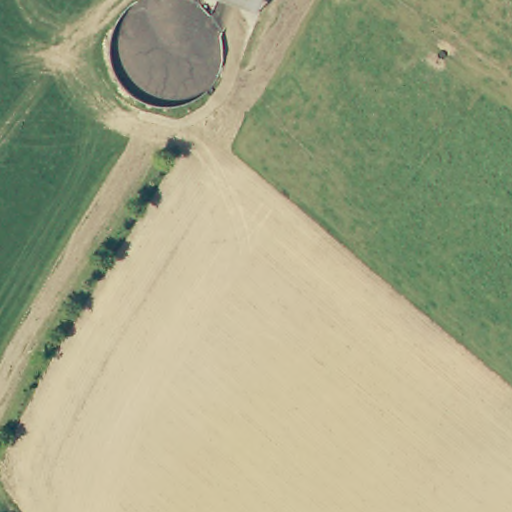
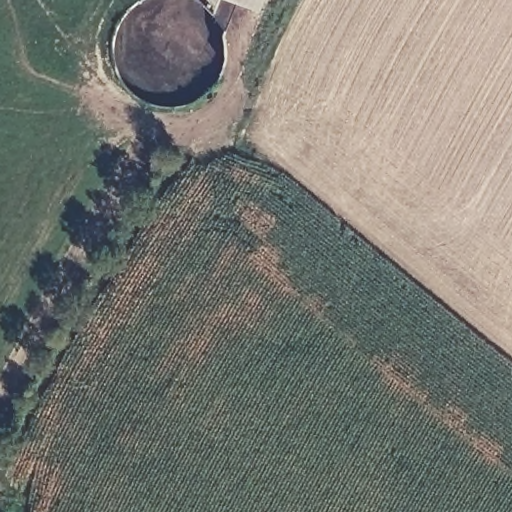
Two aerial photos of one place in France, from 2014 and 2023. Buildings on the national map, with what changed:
unchanged [(250,5),(240,0),(261,0),(258,8),(250,5)]

